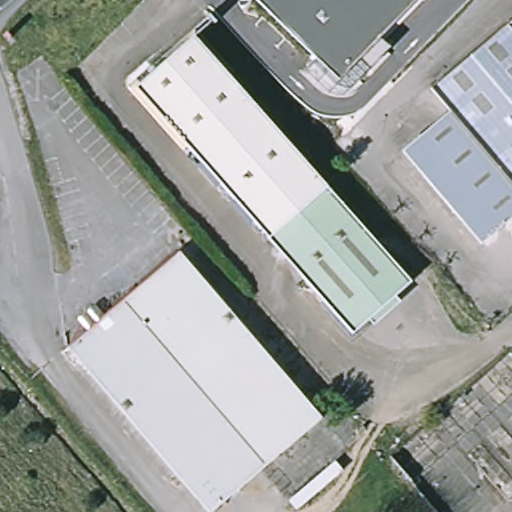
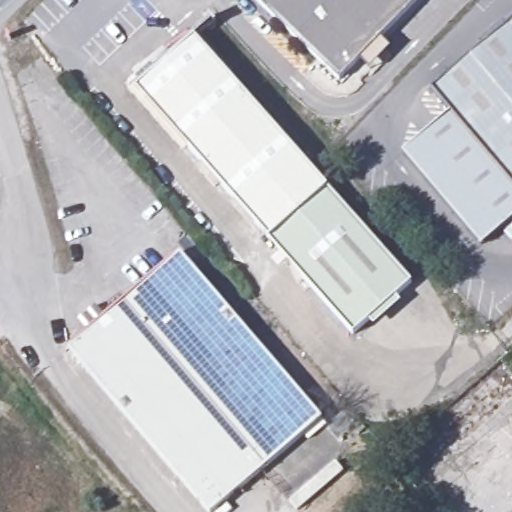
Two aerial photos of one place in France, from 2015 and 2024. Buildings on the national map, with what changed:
unchanged [(258,0),(410,0),(337,76),(258,0)]
unchanged [(403,150),(450,111),(429,86),(512,16),(512,212),(479,240),(403,150)]
unchanged [(190,34),(412,278),(352,333),(130,88),(190,34)]
unchanged [(179,251),(322,416),(211,512),(208,512),(67,348),(179,251)]

